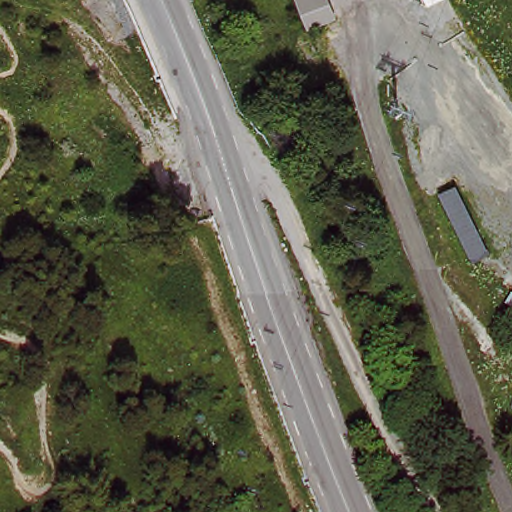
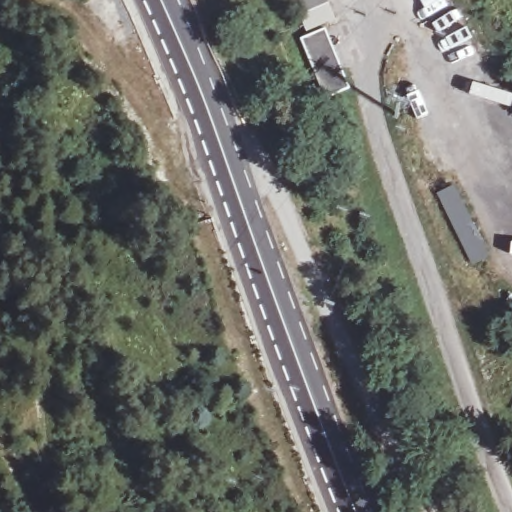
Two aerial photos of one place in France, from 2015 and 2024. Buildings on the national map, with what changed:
unchanged [(332,9),(310,17),(301,0),(328,0),(332,9)]
new [(326,28),(351,88),(326,97),(301,38),(326,28)]
unchanged [(457,186),(492,256),(472,265),(440,195),(457,186)]
unchanged [(512,403),(512,413),(508,411),(512,403)]

